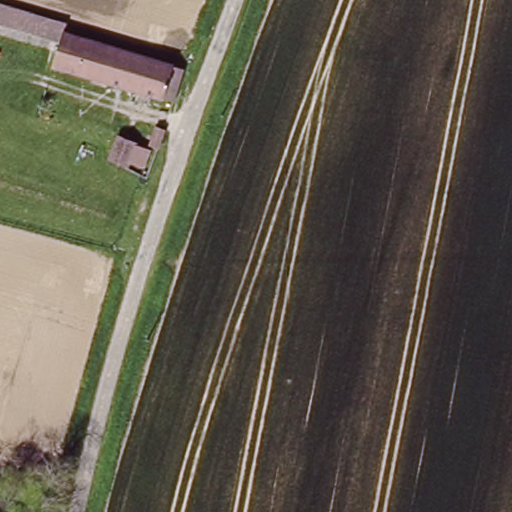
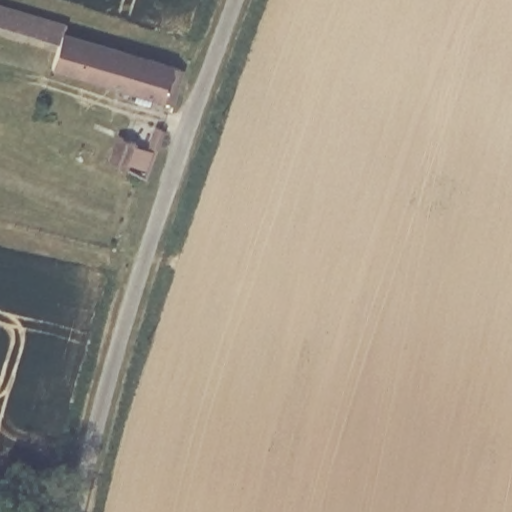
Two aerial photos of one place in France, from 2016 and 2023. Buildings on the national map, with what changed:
unchanged [(65,36),(186,71),(174,103),(55,66),(63,42),(0,22),(0,6),(68,26),(65,36)]
unchanged [(159,129),(168,131),(160,151),(152,148),(159,129)]
unchanged [(136,141),(128,165),(109,159),(118,135),(136,141)]

